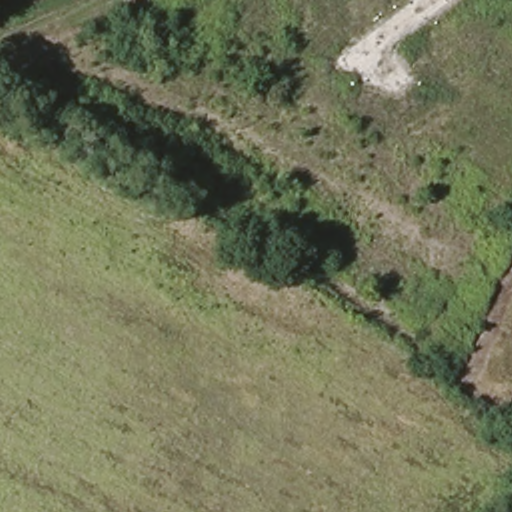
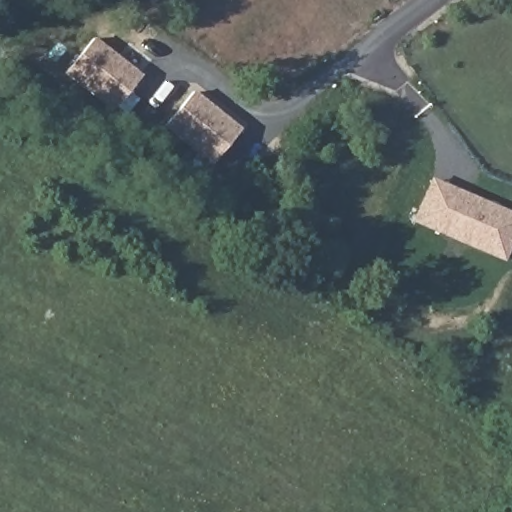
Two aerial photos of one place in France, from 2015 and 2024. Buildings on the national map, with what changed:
new [(115,108),(67,71),(94,37),(142,75),(115,108)]
new [(166,126),(194,91),(241,130),(213,164),(166,126)]
new [(412,222),(431,178),(512,213),(512,246),(505,262),(412,222)]

